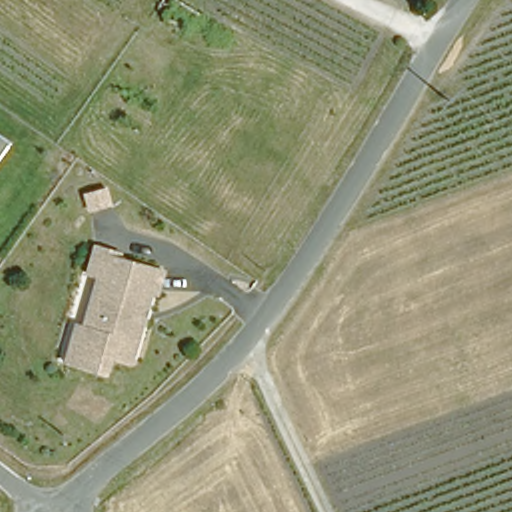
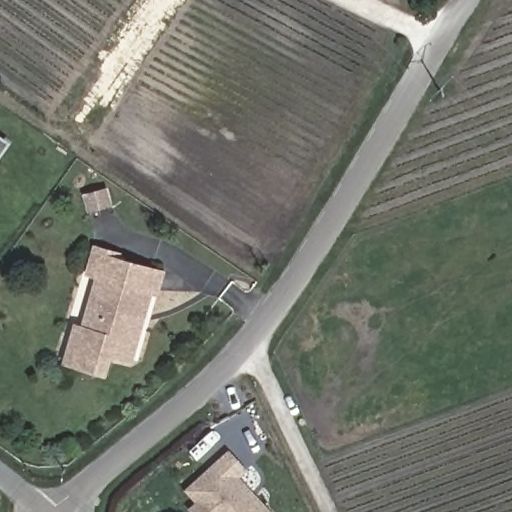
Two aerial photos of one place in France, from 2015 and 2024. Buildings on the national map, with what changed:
unchanged [(0,155),(0,136),(9,142),(0,155)]
unchanged [(152,302),(146,301),(128,368),(106,363),(102,377),(63,366),(73,328),(81,329),(94,282),(86,280),(94,251),(112,256),(110,265),(158,278),(152,302)]
new [(188,510),(195,505),(184,492),(228,452),(247,473),(239,479),(269,512),(190,512),(188,510)]

